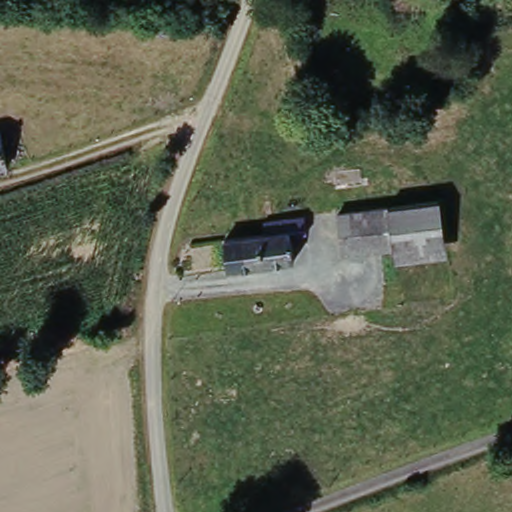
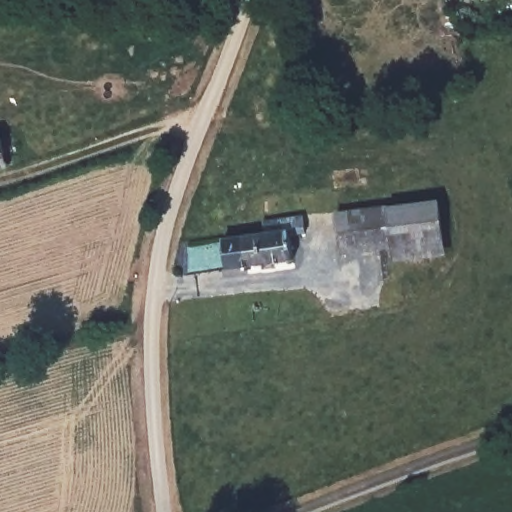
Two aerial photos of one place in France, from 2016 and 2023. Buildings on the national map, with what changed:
unchanged [(29,169),(0,174),(0,137),(25,134),(29,169)]
unchanged [(448,254),(400,262),(396,245),(391,211),(441,202),(448,254)]
unchanged [(391,211),(396,245),(346,255),(340,220),(391,211)]
unchanged [(299,267),(229,279),(225,242),(264,236),(263,229),(290,223),(299,267)]

